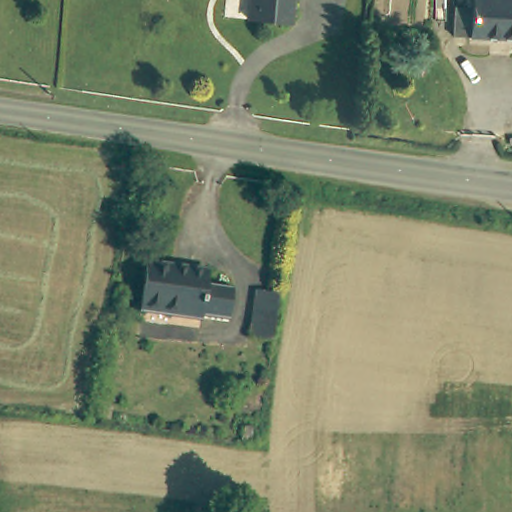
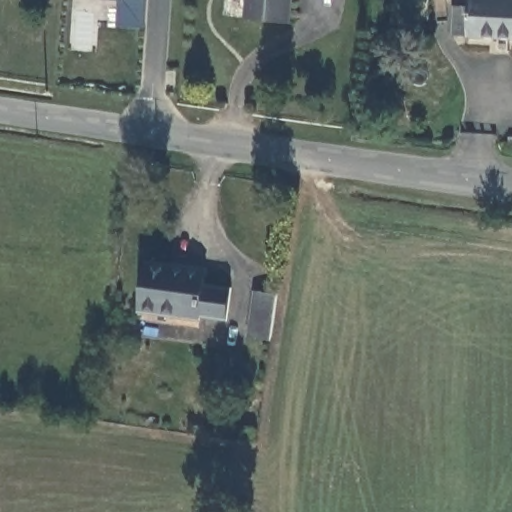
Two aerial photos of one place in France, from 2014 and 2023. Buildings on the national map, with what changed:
new [(145,27),(116,26),(118,1),(113,0),(147,0),(145,27)]
unchanged [(289,20),(249,15),(251,0),(292,0),(289,20)]
unchanged [(469,0),(512,0),(512,38),(467,36),(449,35),(452,5),(469,5),(469,0)]
unchanged [(203,272),(202,284),(227,288),(223,316),(222,320),(197,316),(196,321),(171,317),(171,312),(137,307),(143,263),(203,272)]
unchanged [(276,292),(270,335),(246,331),(254,288),(276,292)]

